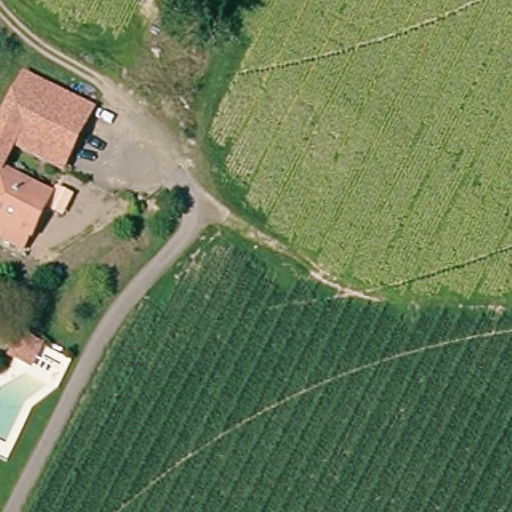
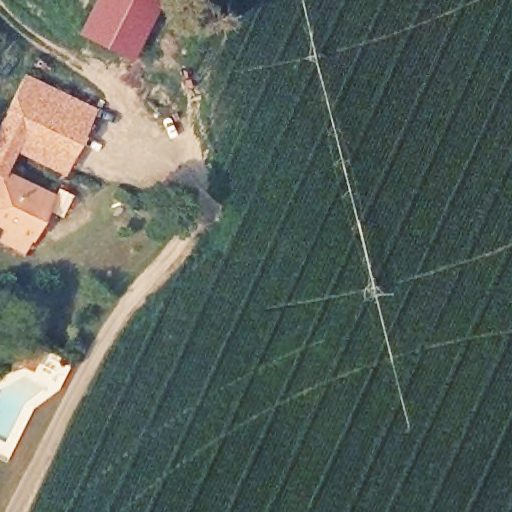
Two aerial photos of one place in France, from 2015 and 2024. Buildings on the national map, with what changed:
new [(164,0),(136,61),(76,32),(92,0),(164,0)]
unchanged [(5,165),(54,189),(33,232),(31,231),(25,245),(4,235),(3,234),(8,223),(9,221),(0,217),(0,117),(23,70),(24,70),(96,104),(92,111),(66,166),(16,142),(5,165)]
unchanged [(1,352),(15,325),(44,340),(35,362),(30,360),(28,364),(1,352)]

